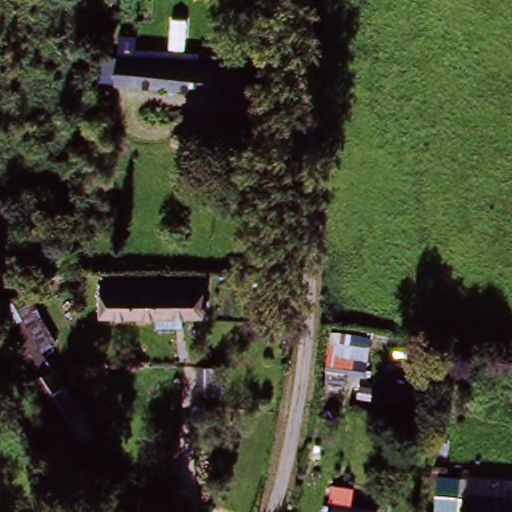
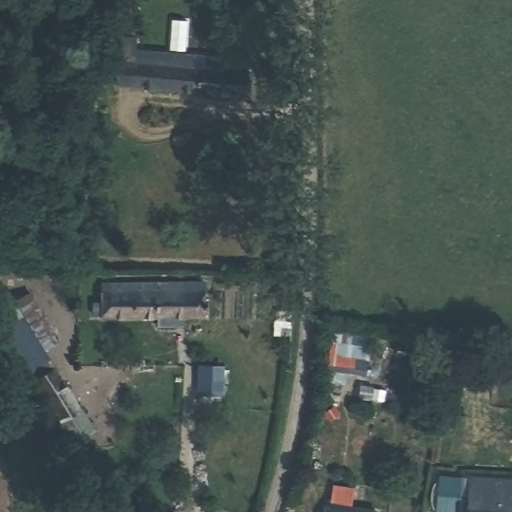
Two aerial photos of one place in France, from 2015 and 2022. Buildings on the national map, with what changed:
unchanged [(113,90),(116,61),(158,65),(156,95),(113,90)]
unchanged [(243,73),(241,102),(156,95),(158,65),(243,73)]
unchanged [(98,321),(97,300),(140,297),(139,286),(196,286),(197,297),(198,317),(98,321)]
unchanged [(71,450),(0,320),(0,299),(12,293),(18,305),(39,297),(59,342),(48,348),(98,440),(71,450)]
unchanged [(202,376),(201,359),(218,360),(218,376),(202,376)]
unchanged [(484,478),(507,478),(512,479),(512,512),(471,512),(472,492),(473,478),(484,478)]
unchanged [(331,512),(331,509),(350,512),(331,512)]

